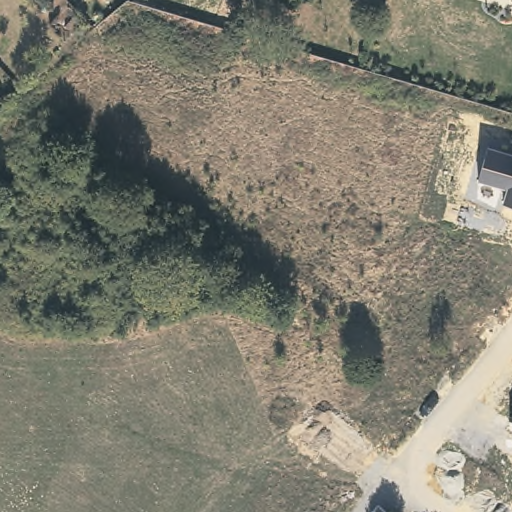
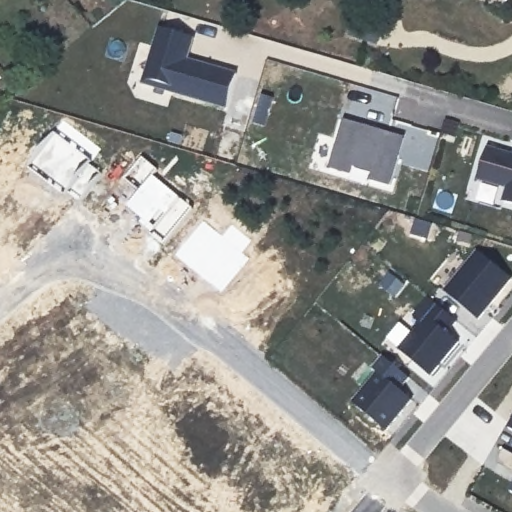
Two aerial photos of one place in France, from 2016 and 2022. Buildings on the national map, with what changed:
new [(159,27),(195,37),(188,59),(238,72),(228,109),(144,85),(159,27)]
new [(344,119),(407,136),(394,187),(370,180),(373,171),(355,166),(353,176),(329,169),(344,119)]
unchanged [(478,181),(487,149),(512,155),(512,207),(503,205),(507,187),(478,181)]
new [(479,251),(512,278),(512,281),(479,320),(445,291),(479,251)]
new [(422,323),(415,315),(430,297),(459,323),(450,335),(460,341),(431,376),(398,350),(422,323)]
new [(373,376),(368,372),(379,360),(405,382),(396,394),(408,404),(382,435),(348,406),(373,376)]
unchanged [(509,430),(512,426),(512,431),(509,430)]

